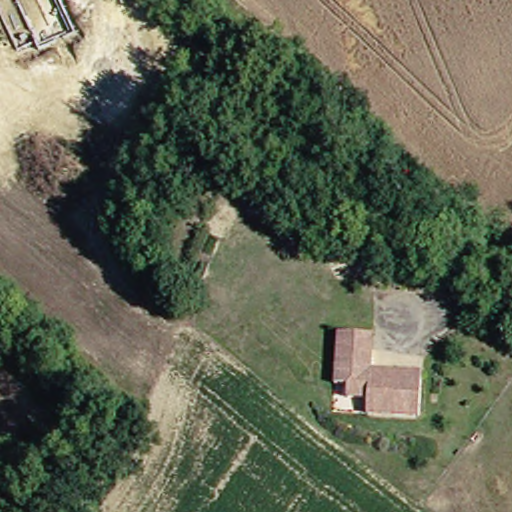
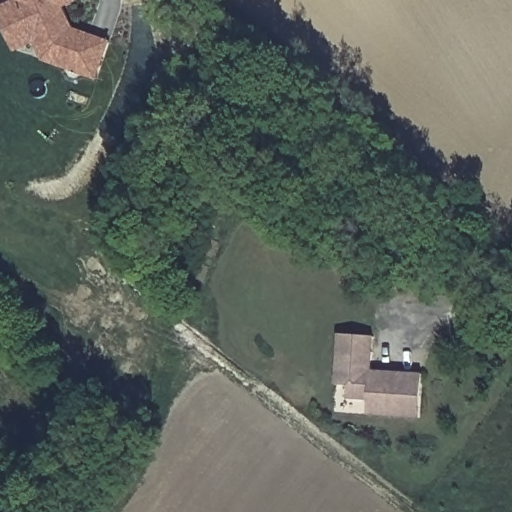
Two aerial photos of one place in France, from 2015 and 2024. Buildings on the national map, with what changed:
new [(43,64),(36,46),(14,52),(0,12),(0,8),(15,2),(14,0),(76,0),(78,6),(65,10),(72,29),(111,41),(97,81),(43,64)]
unchanged [(381,414),(374,413),(375,398),(353,397),(354,385),(341,384),(342,368),(343,348),(343,332),(380,334),(378,350),(377,369),(402,371),(430,372),(428,417),(381,414)]

